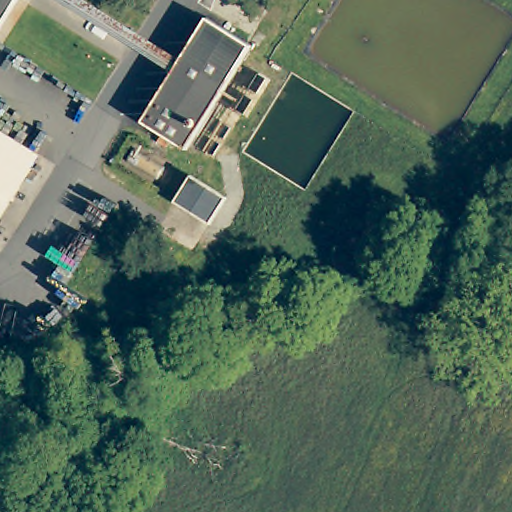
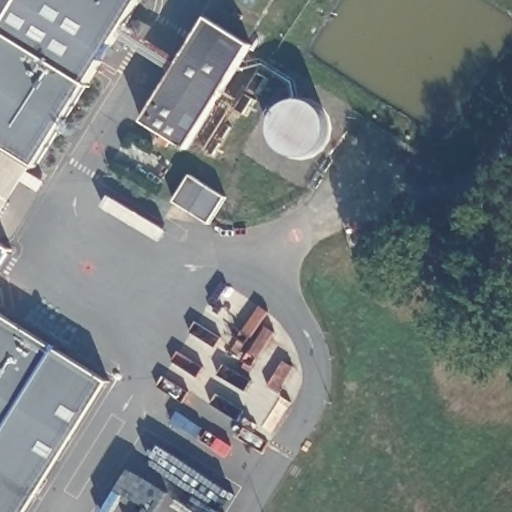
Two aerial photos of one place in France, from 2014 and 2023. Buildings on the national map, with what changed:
unchanged [(0,37),(0,0),(24,0),(0,37)]
new [(0,37),(24,0),(138,0),(48,152),(0,122),(0,37)]
unchanged [(254,44),(189,150),(143,121),(208,16),(254,44)]
unchanged [(0,228),(0,122),(48,152),(0,228)]
unchanged [(231,199),(214,226),(179,203),(195,176),(231,199)]
new [(0,268),(0,235),(16,244),(0,268)]
new [(0,512),(0,312),(111,382),(30,512),(0,512)]

